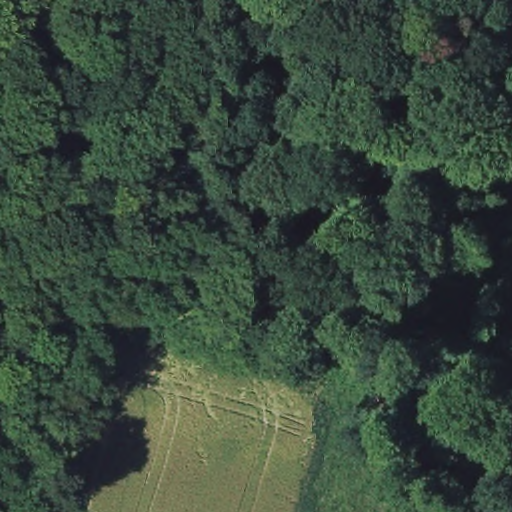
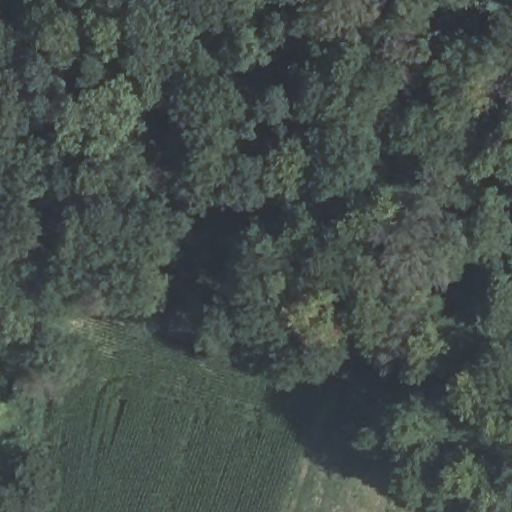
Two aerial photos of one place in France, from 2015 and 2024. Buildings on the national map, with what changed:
unchanged [(384,452),(409,457),(409,487),(384,482),(384,452)]

